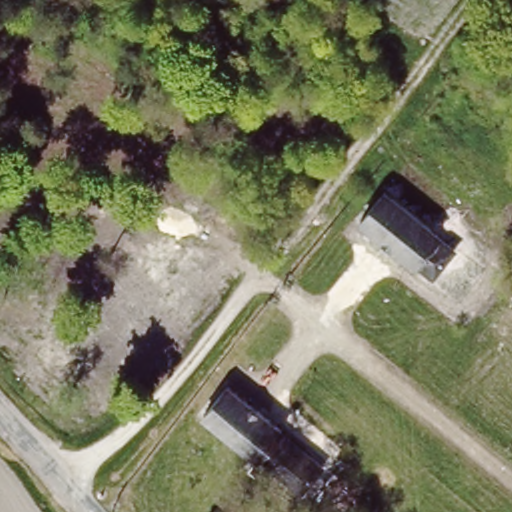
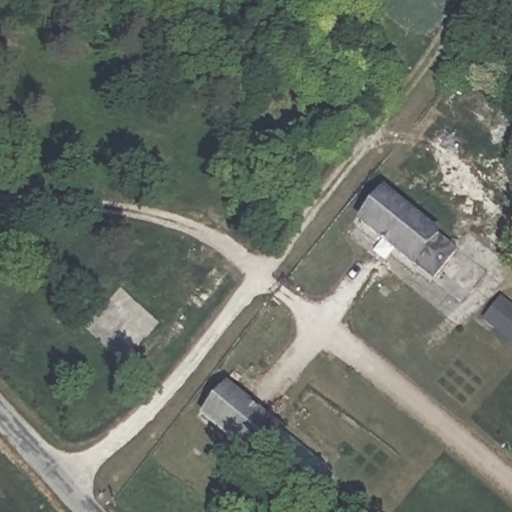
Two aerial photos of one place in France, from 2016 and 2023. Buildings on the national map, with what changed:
unchanged [(383,183),(442,228),(435,236),(455,250),(436,280),(358,218),(383,183)]
new [(484,320),(502,296),(512,305),(512,343),(484,320)]
unchanged [(327,462),(307,486),(257,447),(203,403),(223,379),(327,462)]

